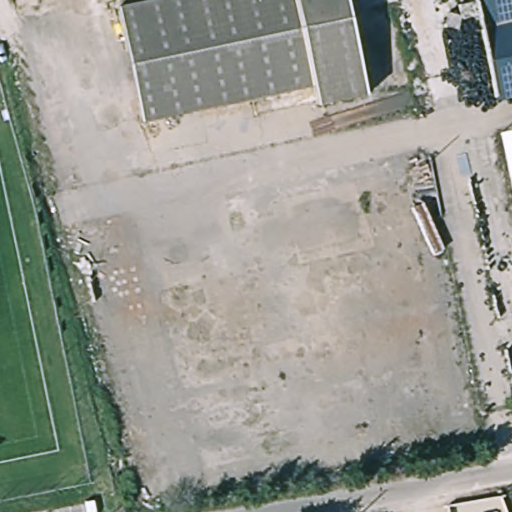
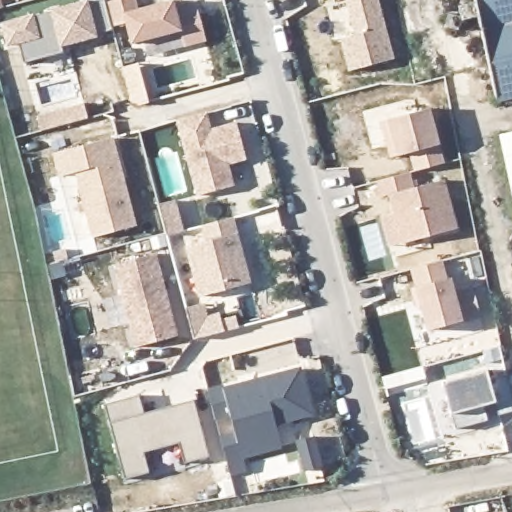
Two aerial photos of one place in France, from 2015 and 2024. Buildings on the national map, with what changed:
new [(107,27),(107,31),(91,35),(92,37),(57,46),(59,53),(18,64),(13,43),(2,46),(0,37),(0,23),(28,16),(28,17),(47,12),(47,11),(82,1),(83,4),(96,0),(100,0),(100,3),(107,27)]
new [(111,0),(131,0),(133,10),(168,1),(171,11),(192,5),(201,42),(179,47),(175,32),(127,45),(121,24),(107,27),(100,3),(111,0)]
demolished [(154,0),(348,0),(366,98),(316,108),(313,88),(141,122),(118,7),(154,0)]
new [(173,0),(177,0),(179,9),(171,11),(168,1),(173,0)]
new [(327,1),(327,0),(331,0),(327,1)]
new [(389,60),(345,72),(337,40),(351,36),(342,0),(373,0),(389,60)]
unchanged [(512,96),(495,100),(474,0),(512,0),(512,96)]
new [(202,114),(206,131),(232,124),(242,161),(223,166),(229,187),(192,197),(173,122),(202,114)]
new [(438,134),(424,137),(421,119),(434,116),(438,134)]
new [(373,163),(354,168),(344,132),(393,119),(407,175),(378,182),(373,163)]
unchanged [(512,133),(512,194),(499,136),(512,133)]
new [(107,139),(130,227),(88,238),(71,173),(55,177),(49,155),(107,139)]
new [(427,251),(392,260),(387,257),(377,219),(391,216),(386,197),(377,199),(373,184),(378,182),(407,175),(426,170),(430,185),(439,183),(452,232),(399,246),(424,239),(427,251)]
new [(228,220),(245,286),(196,298),(183,248),(202,242),(198,227),(228,220)]
new [(172,337),(130,348),(109,265),(150,255),(172,337)]
new [(407,272),(446,262),(451,280),(455,279),(459,294),(477,289),(485,317),(423,333),(417,309),(412,311),(407,292),(412,290),(407,272)]
new [(237,460),(233,446),(241,474),(225,479),(215,440),(229,436),(225,419),(210,422),(203,394),(219,389),(219,392),(239,387),(247,385),(294,372),(306,418),(270,427),(272,436),(276,450),(237,460)]
new [(483,374),(485,383),(502,378),(511,415),(493,419),(490,407),(479,410),(483,425),(450,433),(437,385),(483,374)]
new [(178,467),(173,446),(138,455),(144,476),(118,482),(99,407),(134,398),(139,416),(150,413),(160,410),(189,403),(204,460),(178,467)]
new [(317,468),(302,472),(293,442),(309,438),(317,468)]

